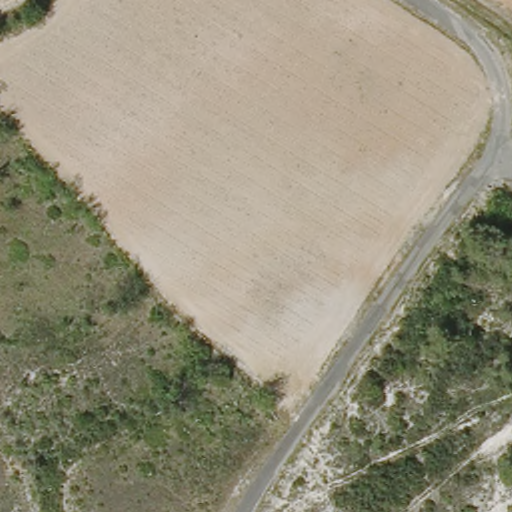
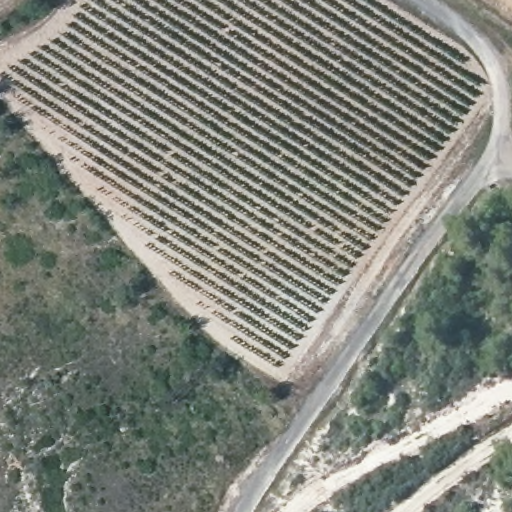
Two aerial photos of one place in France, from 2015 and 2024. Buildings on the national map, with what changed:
[]

